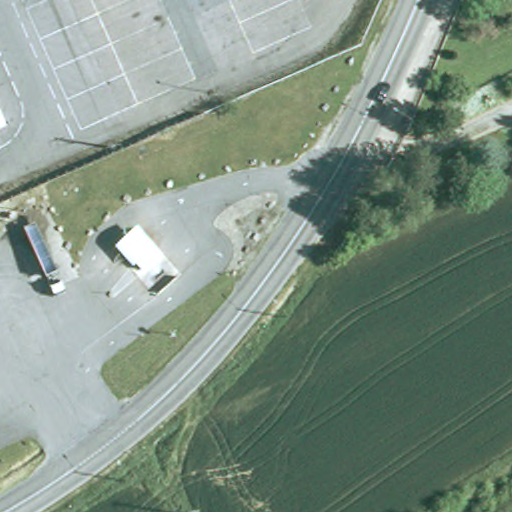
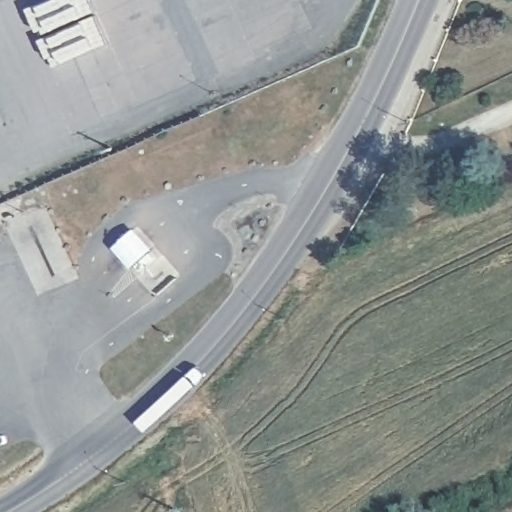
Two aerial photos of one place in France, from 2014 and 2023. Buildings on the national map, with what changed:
unchanged [(15,125),(0,133),(0,92),(7,108),(15,125)]

